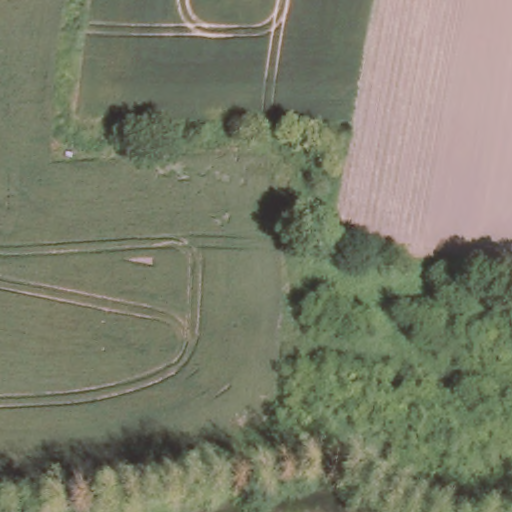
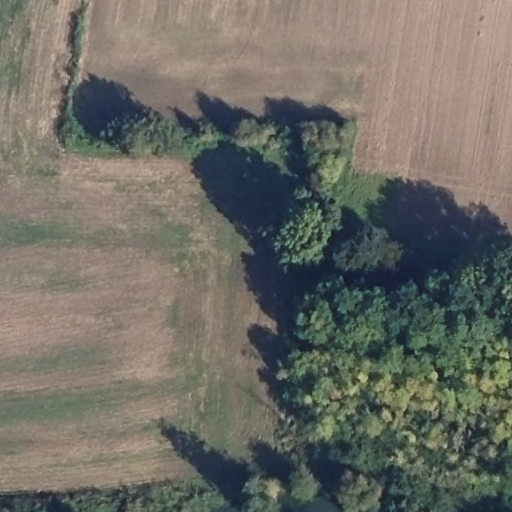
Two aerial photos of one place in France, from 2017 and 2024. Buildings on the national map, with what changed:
[]

